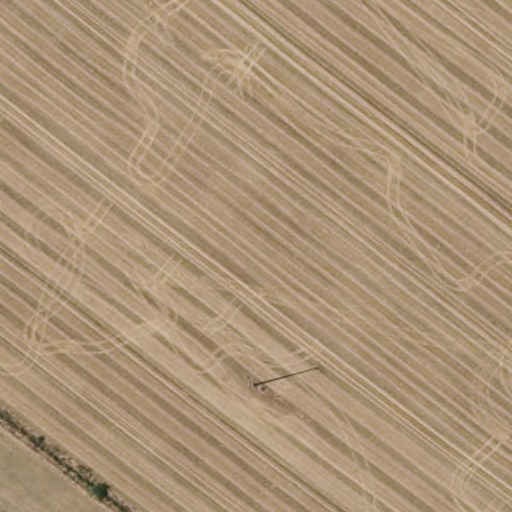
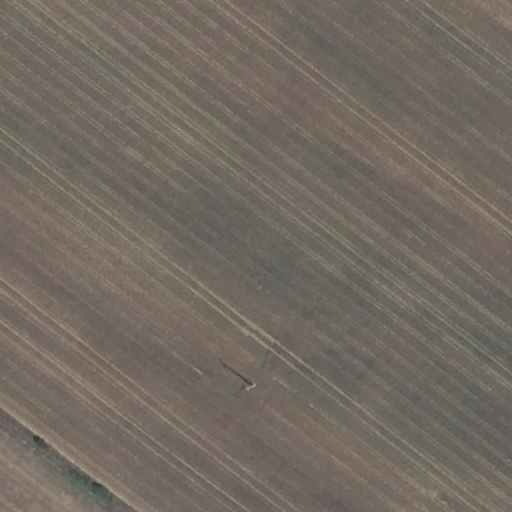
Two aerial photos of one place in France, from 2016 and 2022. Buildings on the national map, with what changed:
[]

